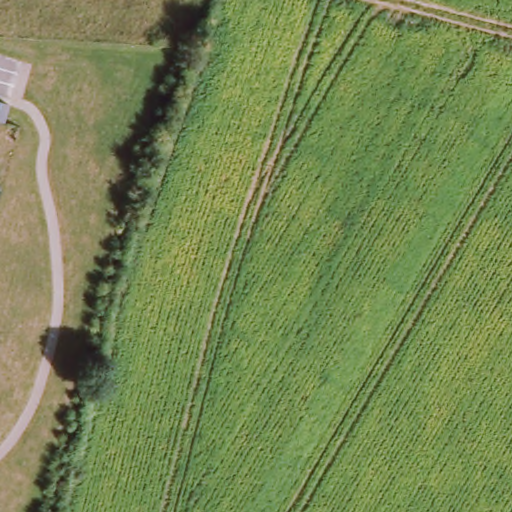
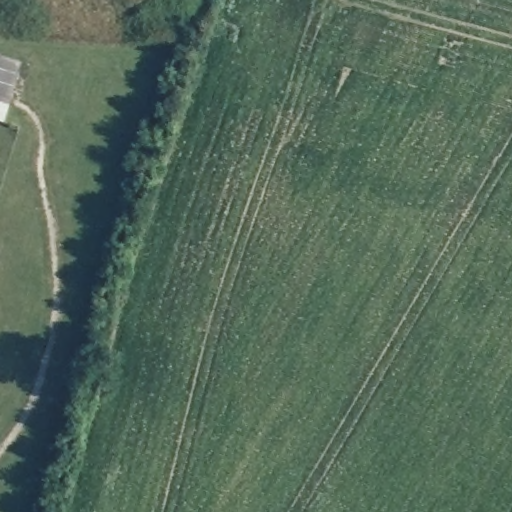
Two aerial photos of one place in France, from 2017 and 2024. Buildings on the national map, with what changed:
unchanged [(0,128),(0,109),(6,111),(1,128),(0,128)]

